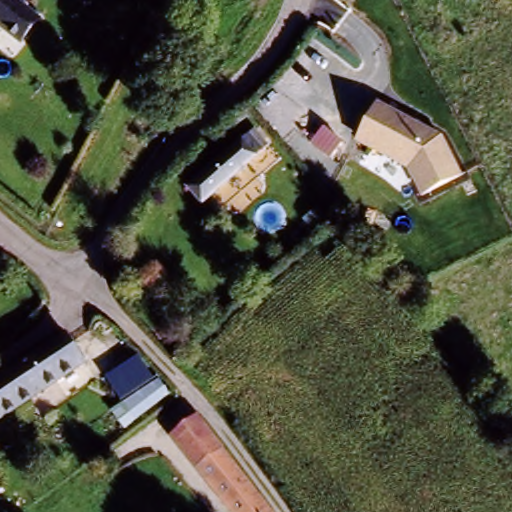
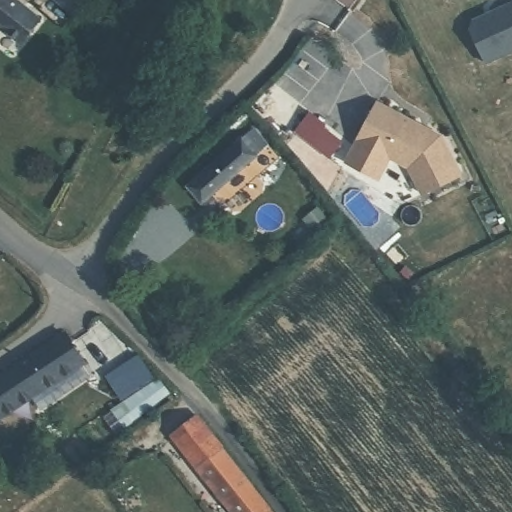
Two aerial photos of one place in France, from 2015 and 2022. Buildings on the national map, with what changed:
unchanged [(24,0),(40,12),(23,35),(0,19),(0,0),(24,0)]
new [(54,0),(93,0),(77,19),(54,0)]
new [(507,1),(508,0),(512,0),(512,50),(485,65),(467,32),(470,25),(509,4),(507,1)]
unchanged [(443,136),(462,174),(422,195),(407,167),(357,142),(378,102),(443,136)]
unchanged [(194,178),(245,133),(252,127),(266,144),(260,149),(208,195),(194,178)]
unchanged [(85,358),(2,416),(0,412),(0,375),(65,330),(85,358)]
unchanged [(167,392),(126,428),(109,410),(120,398),(107,376),(138,356),(154,376),(167,392)]
unchanged [(175,436),(197,417),(272,511),(270,512),(235,512),(175,436)]

